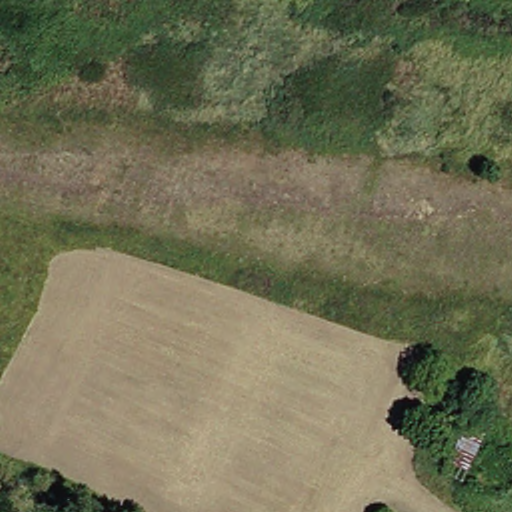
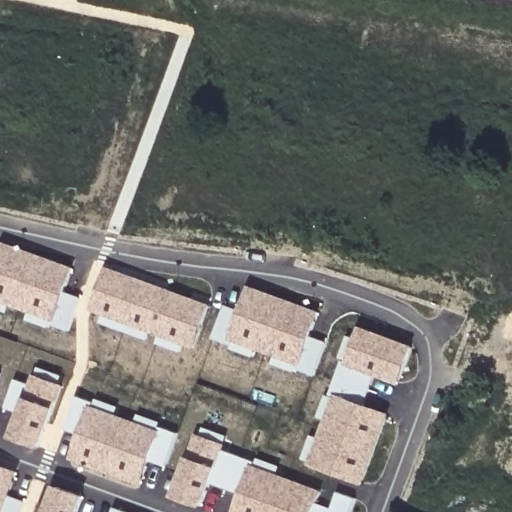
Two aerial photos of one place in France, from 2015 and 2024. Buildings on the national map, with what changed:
new [(50,329),(27,320),(30,312),(11,305),(9,313),(0,310),(0,253),(4,242),(75,268),(67,290),(81,297),(70,332),(51,324),(50,329)]
new [(160,337),(151,333),(149,340),(101,323),(105,314),(92,310),(109,266),(212,304),(196,349),(185,346),(182,353),(158,344),(160,337)]
new [(275,356),(255,349),(253,357),(231,349),(232,346),(213,339),(226,304),(241,309),(250,285),(320,312),(311,335),(326,342),(315,376),(296,369),(295,373),(272,364),(275,356)]
new [(309,465),(310,461),(303,459),(312,436),(319,438),(326,419),(318,417),(326,394),(330,396),(343,360),(340,359),(348,335),(355,339),(360,325),(414,346),(400,384),(380,377),(369,406),(390,414),(363,486),(309,465)]
new [(10,438),(20,412),(7,407),(16,379),(31,384),(35,374),(36,374),(40,367),(64,376),(61,384),(65,385),(56,409),(41,449),(10,438)]
new [(0,379),(0,373),(2,374),(0,379)]
new [(150,459),(143,487),(71,459),(79,434),(66,429),(76,397),(96,403),(97,399),(120,407),(118,414),(137,422),(140,414),(162,422),(160,427),(179,433),(166,467),(150,459)]
unchanged [(492,433),(470,480),(451,471),(474,424),(492,433)]
new [(241,493),(212,481),(204,508),(174,497),(189,456),(197,433),(203,435),(205,427),(230,436),(225,449),(257,462),(259,458),(281,466),(280,474),(323,491),(318,503),(333,509),(340,492),(358,499),(353,512),(235,512),(241,493)]
new [(12,495),(27,502),(24,512),(0,512),(0,464),(20,472),(12,495)]
new [(55,486),(86,496),(80,512),(46,512),(55,486)]
new [(116,507),(130,512),(114,512),(116,507)]

